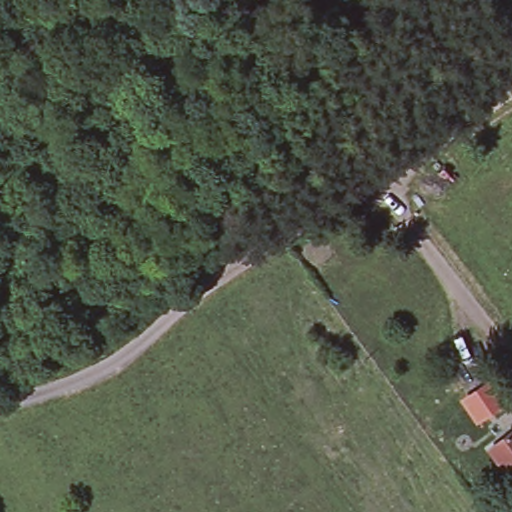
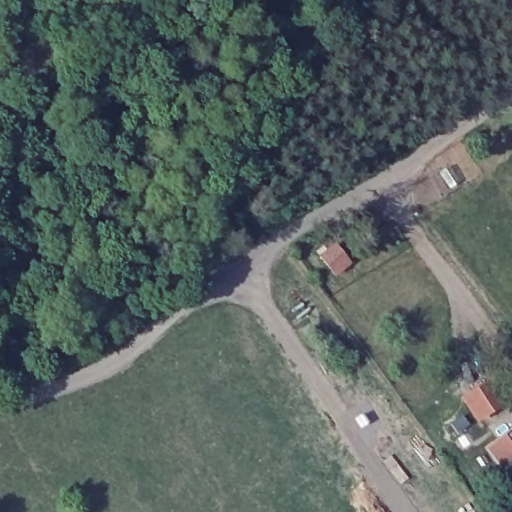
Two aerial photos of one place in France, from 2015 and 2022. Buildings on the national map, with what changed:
unchanged [(487,379),(505,406),(476,425),(458,398),(487,379)]
unchanged [(512,479),(484,441),(512,421),(512,479)]

